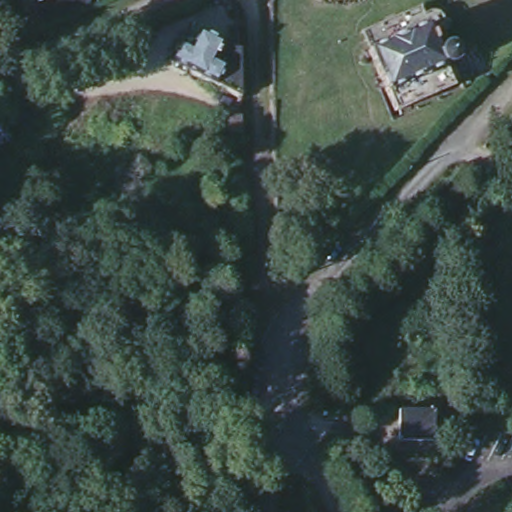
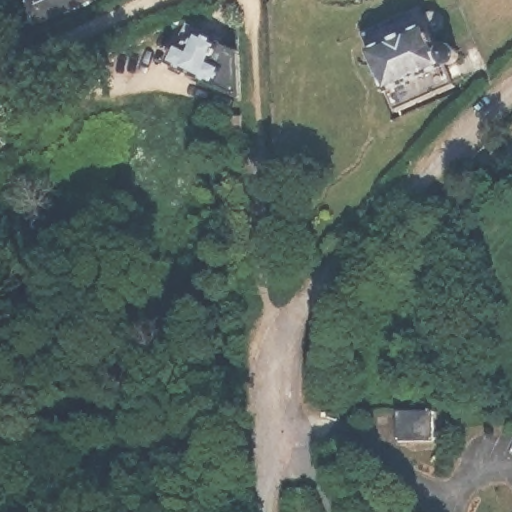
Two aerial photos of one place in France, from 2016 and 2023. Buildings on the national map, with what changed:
unchanged [(38,0),(84,0),(44,17),(38,0)]
unchanged [(244,89),(177,61),(197,16),(243,37),(244,89)]
unchanged [(439,44),(443,79),(386,107),(359,47),(426,16),(434,38),(438,36),(439,44)]
unchanged [(16,157),(0,164),(0,116),(1,116),(0,114),(0,86),(9,82),(19,109),(6,114),(16,137),(9,140),(16,157)]
unchanged [(247,136),(230,136),(229,124),(237,117),(245,116),(247,136)]
unchanged [(402,445),(403,407),(436,411),(434,442),(402,445)]

